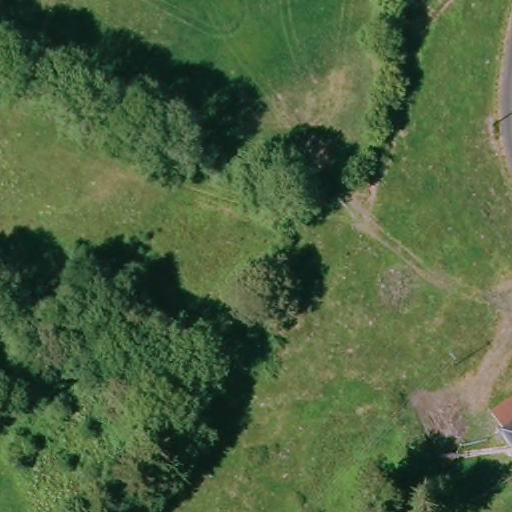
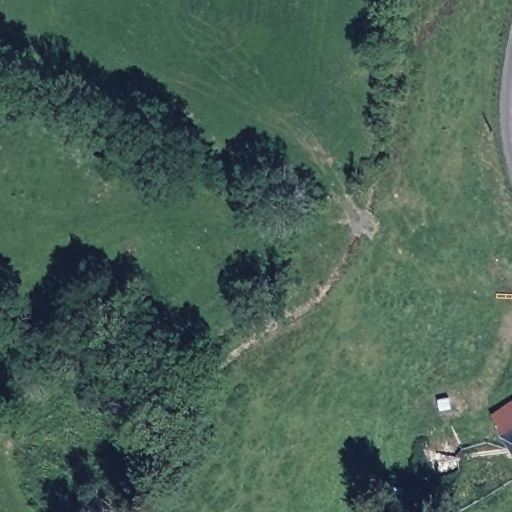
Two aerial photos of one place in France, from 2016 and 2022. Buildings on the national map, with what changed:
unchanged [(512,452),(492,420),(512,406),(512,452)]

